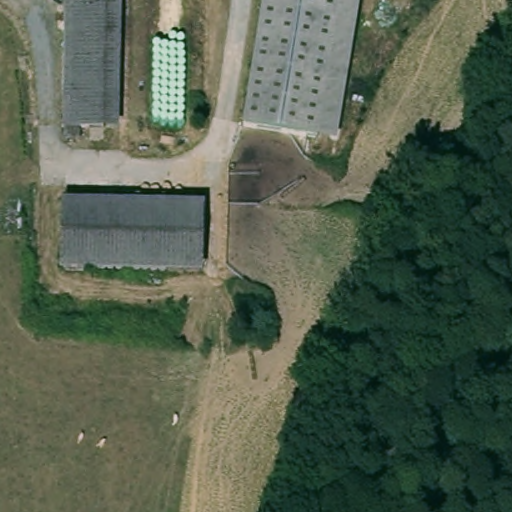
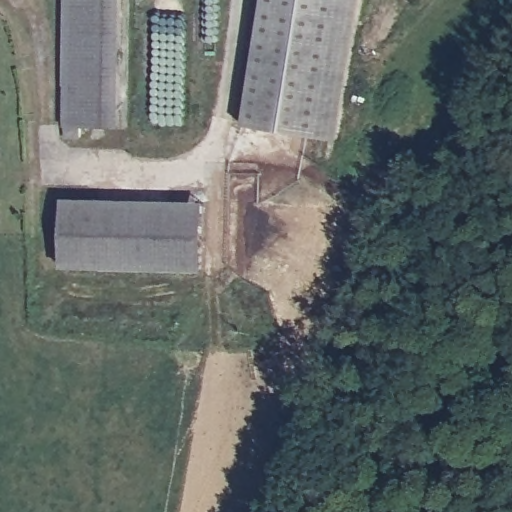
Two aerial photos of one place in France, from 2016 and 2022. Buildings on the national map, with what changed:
unchanged [(106,132),(63,128),(73,0),(116,0),(106,132)]
unchanged [(337,141),(243,126),(264,0),(359,0),(337,141)]
unchanged [(136,198),(136,211),(131,265),(63,260),(69,193),(136,198)]
unchanged [(207,202),(203,270),(131,265),(136,211),(136,198),(207,202)]

